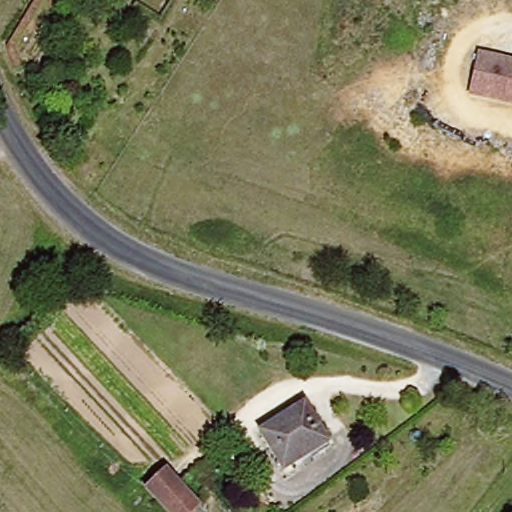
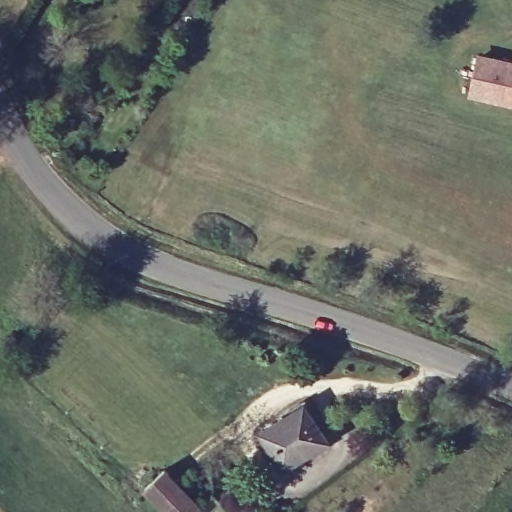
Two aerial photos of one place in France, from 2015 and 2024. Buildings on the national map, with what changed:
unchanged [(468,98),(480,51),(512,59),(512,104),(468,98)]
unchanged [(261,431),(308,403),(325,433),(331,443),(282,470),(261,431)]
unchanged [(143,497),(165,476),(201,512),(158,512),(143,497)]

